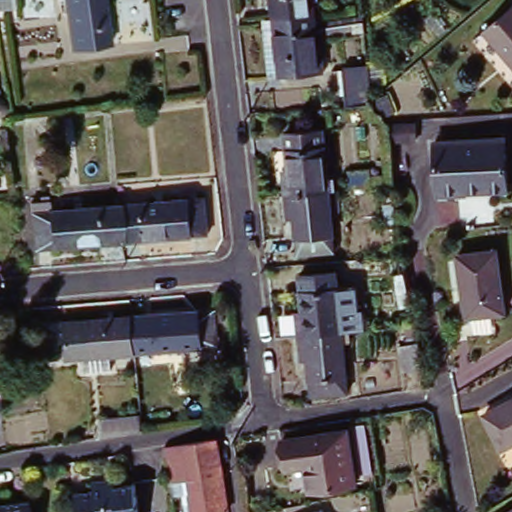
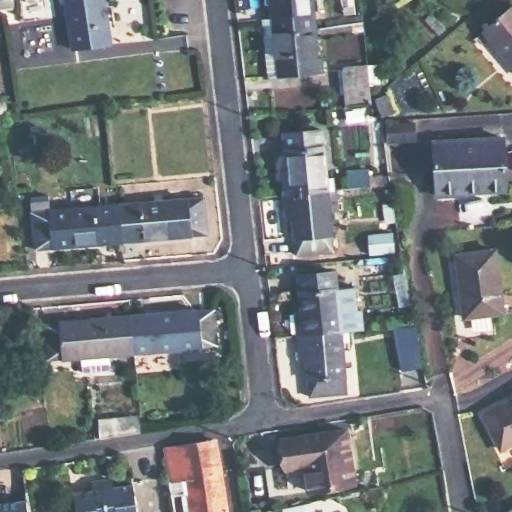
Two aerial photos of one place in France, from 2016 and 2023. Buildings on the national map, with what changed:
unchanged [(75,49),(68,0),(108,0),(114,44),(75,49)]
unchanged [(315,0),(318,28),(300,30),(298,17),(279,19),(277,0),(315,0)]
unchanged [(485,36),(512,13),(512,65),(485,36)]
unchanged [(298,17),(300,30),(318,28),(320,56),(331,54),(332,71),(284,76),(283,71),(273,72),(268,21),(279,21),(279,19),(298,17)]
unchanged [(342,69),(367,67),(371,105),(345,107),(342,69)]
unchanged [(417,116),(418,134),(392,137),(390,119),(417,116)]
unchanged [(287,172),(292,171),(290,134),(325,130),(331,190),(322,191),(289,194),(287,172)]
unchanged [(506,136),(508,185),(470,189),(470,194),(438,197),(436,141),(506,136)]
unchanged [(322,191),(331,190),(336,251),(302,255),(297,217),(292,218),(289,194),(322,191)]
unchanged [(112,243),(38,249),(35,201),(43,201),(43,195),(54,195),(56,210),(122,204),(125,242),(112,243)]
unchanged [(122,204),(206,196),(209,235),(125,242),(122,204)]
unchanged [(496,253),(503,315),(466,319),(458,257),(496,253)]
unchanged [(295,312),(301,312),(297,275),(333,272),(335,290),(353,289),(357,328),(339,330),(339,333),(297,337),(295,312)]
unchanged [(224,307),(228,344),(142,352),(140,335),(139,315),(224,307)]
unchanged [(140,335),(142,352),(121,354),(122,370),(94,372),(92,356),(57,359),(52,322),(139,315),(140,335)]
unchanged [(408,366),(403,342),(411,340),(407,317),(421,316),(429,363),(408,366)]
unchanged [(339,333),(345,393),(309,397),(305,359),(300,360),(297,337),(339,333)]
unchanged [(102,426),(101,406),(140,400),(142,419),(102,426)]
unchanged [(512,406),(512,453),(491,419),(512,406)]
unchanged [(282,462),(278,440),(344,430),(352,485),(308,493),(305,468),(283,471),(282,462)]
unchanged [(162,447),(211,440),(217,453),(225,512),(188,512),(186,497),(171,499),(167,480),(162,447)]
unchanged [(96,490),(95,482),(116,479),(117,486),(137,483),(141,512),(79,512),(77,493),(96,490)]
unchanged [(0,501),(7,499),(7,496),(27,492),(31,512),(0,512),(0,501)]
unchanged [(512,509),(512,512),(507,512),(512,509)]

